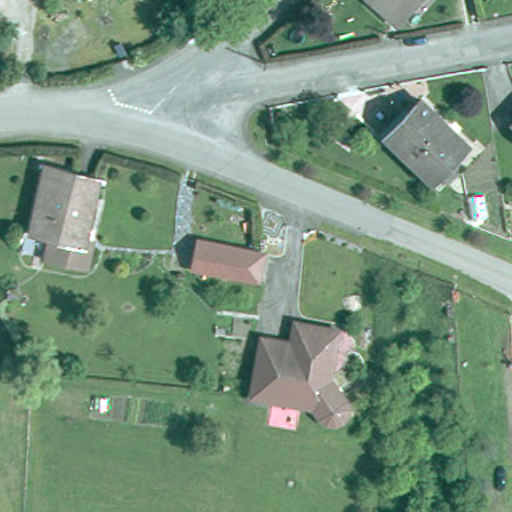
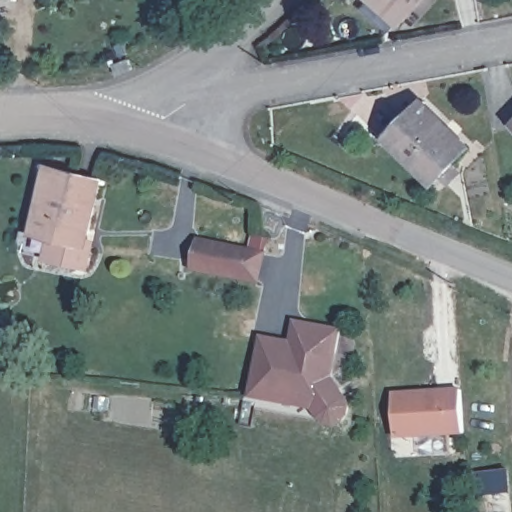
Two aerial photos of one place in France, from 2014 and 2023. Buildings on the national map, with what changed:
unchanged [(399,26),(370,0),(423,0),(399,26)]
unchanged [(117,75),(114,67),(127,59),(134,70),(119,77),(117,75)]
unchanged [(421,101),(470,146),(435,182),(386,137),(421,101)]
unchanged [(98,181),(82,243),(91,247),(86,267),(21,250),(26,231),(31,232),(48,167),(98,181)]
unchanged [(240,272),(197,268),(200,244),(242,248),(240,272)]
unchanged [(288,345),(296,329),(324,327),(342,333),(332,382),(347,407),(348,413),(347,422),(345,427),(340,428),(334,430),(329,428),(322,426),(314,413),(247,402),(261,341),(288,345)]
new [(464,435),(396,440),(392,392),(460,387),(464,435)]

